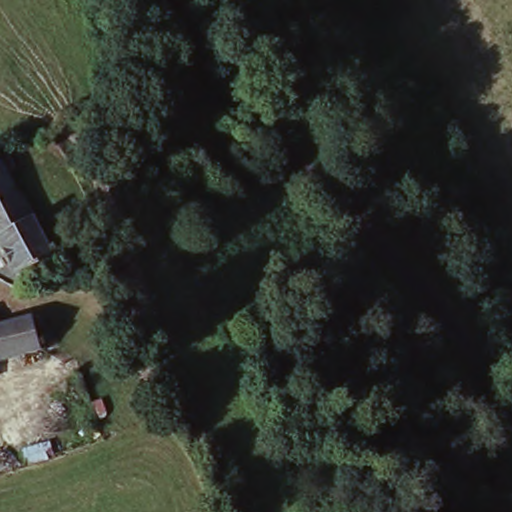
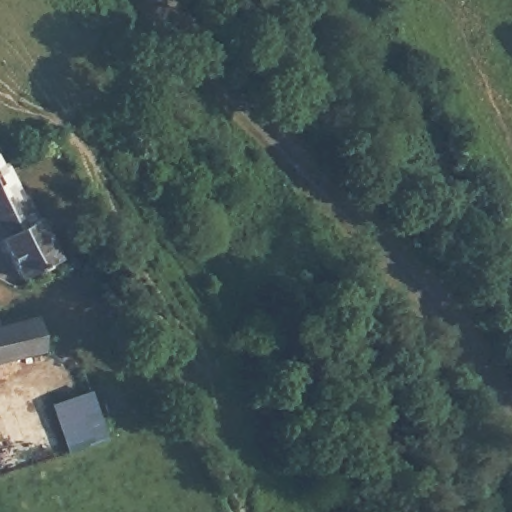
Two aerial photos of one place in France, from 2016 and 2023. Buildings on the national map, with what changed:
unchanged [(13,197),(17,196),(52,261),(14,280),(0,253),(0,174),(13,197)]
unchanged [(34,315),(43,348),(0,360),(0,323),(34,315)]
new [(50,405),(88,391),(107,440),(68,454),(50,405)]

